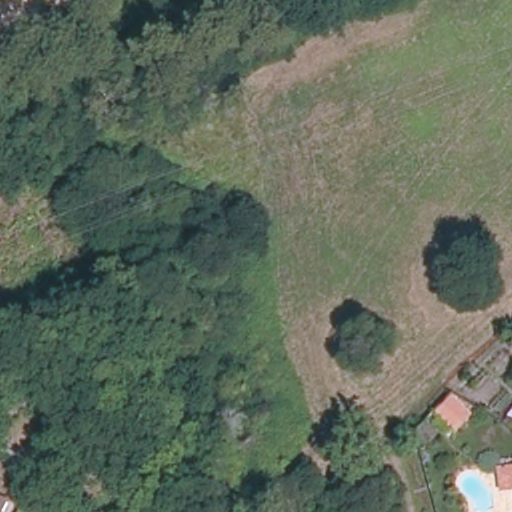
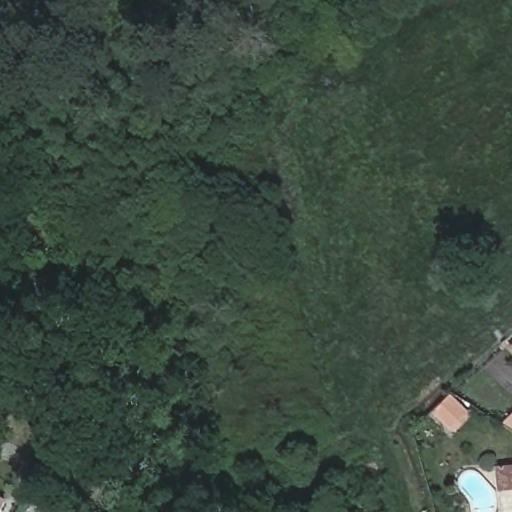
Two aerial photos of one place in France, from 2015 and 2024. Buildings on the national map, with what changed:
unchanged [(453,394),(467,410),(452,425),(437,409),(453,394)]
unchanged [(434,446),(419,449),(416,436),(430,432),(434,446)]
unchanged [(500,489),(498,466),(512,464),(512,487),(500,489)]
unchanged [(0,512),(0,498),(6,502),(0,512)]

